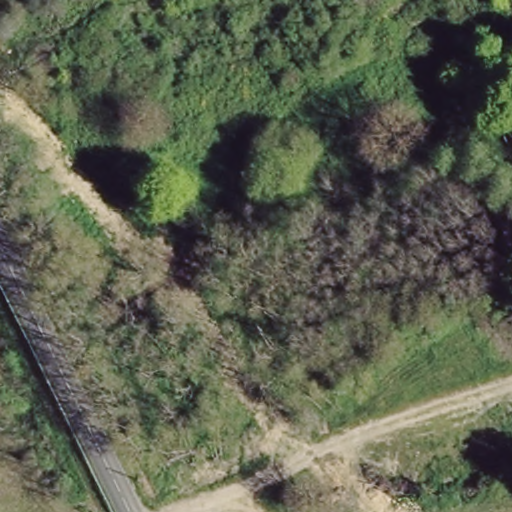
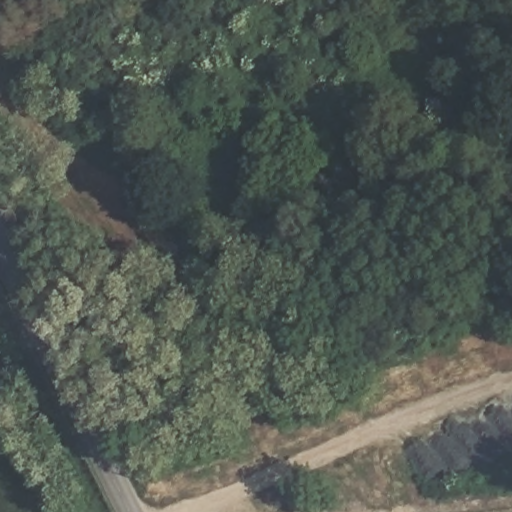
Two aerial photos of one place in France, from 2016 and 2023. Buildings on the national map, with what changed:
[]

